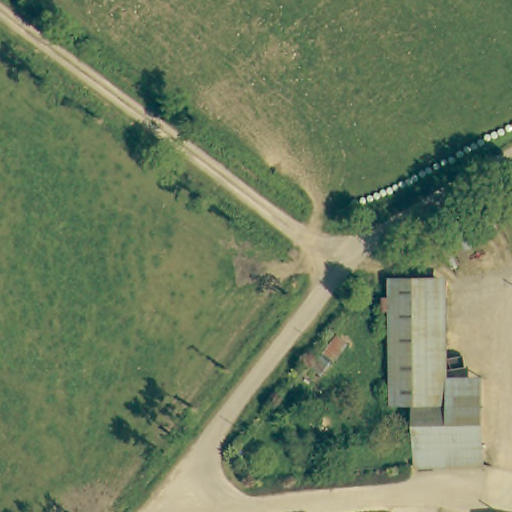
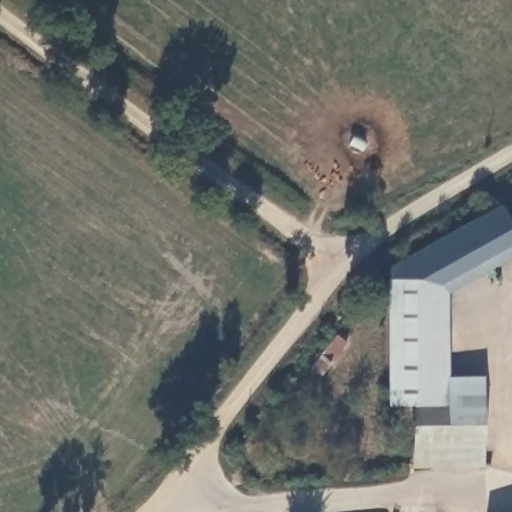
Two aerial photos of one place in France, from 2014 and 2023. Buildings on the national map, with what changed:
new [(447,277),(387,279),(389,266),(500,204),(512,225),(512,255),(447,291),(447,277)]
unchanged [(411,467),(411,403),(387,401),(387,279),(447,277),(449,378),(483,377),(483,466),(411,467)]

